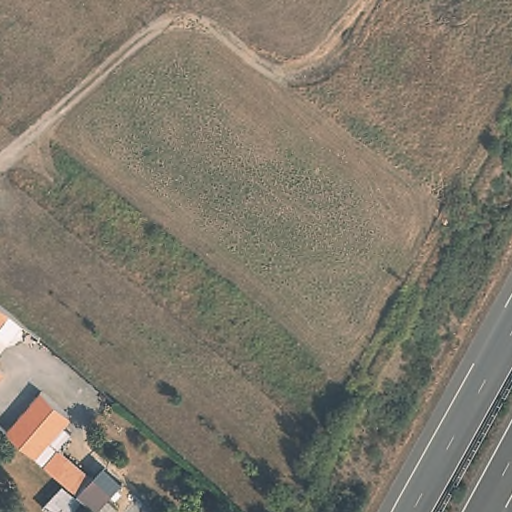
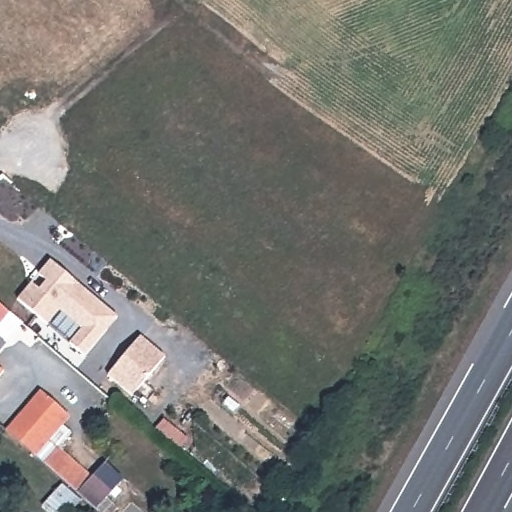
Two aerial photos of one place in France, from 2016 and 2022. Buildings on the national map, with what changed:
new [(30,283),(42,293),(50,284),(38,274),(49,260),(117,317),(84,356),(69,343),(81,328),(58,310),(46,324),(17,299),(30,283)]
unchanged [(16,318),(1,336),(0,335),(0,305),(16,318)]
new [(139,336),(164,357),(131,395),(107,375),(139,336)]
unchanged [(34,450),(6,426),(41,386),(69,410),(60,420),(34,450)]
unchanged [(58,444),(92,472),(93,471),(110,489),(107,493),(118,504),(111,512),(104,512),(34,450),(60,420),(70,429),(58,444)]
unchanged [(79,495),(69,507),(52,491),(62,480),(79,495)]

